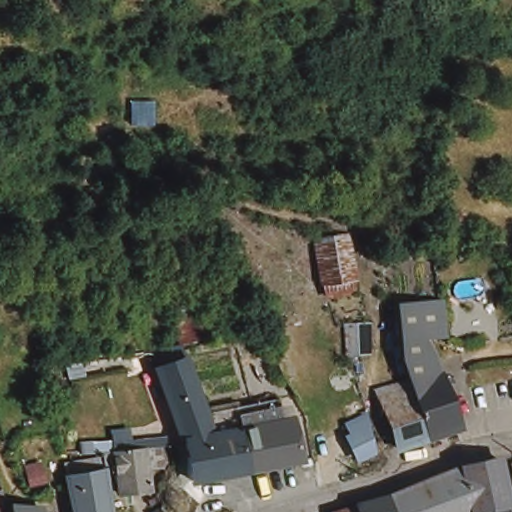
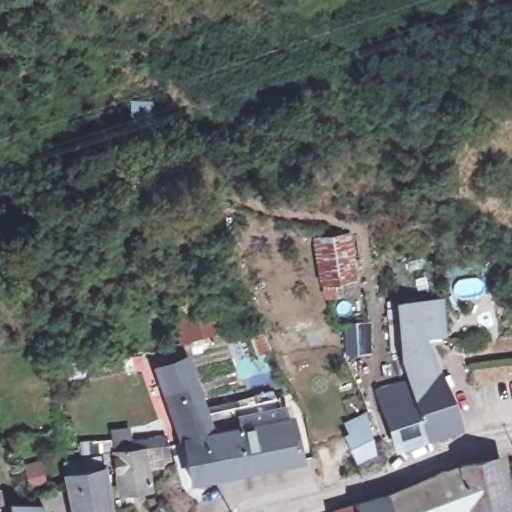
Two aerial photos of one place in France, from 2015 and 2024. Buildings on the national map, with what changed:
unchanged [(319,282),(311,245),(342,240),(349,277),(319,282)]
unchanged [(407,380),(397,354),(395,303),(436,300),(439,335),(424,336),(459,426),(432,437),(407,380)]
unchanged [(342,328),(367,326),(367,352),(344,355),(342,328)]
unchanged [(282,421),(294,420),(302,459),(187,480),(160,381),(154,361),(186,354),(191,373),(201,409),(277,396),(282,421)]
unchanged [(382,407),(378,409),(372,393),(407,380),(432,437),(399,451),(382,407)]
unchanged [(369,420),(380,455),(350,464),(342,441),(349,438),(345,428),(369,420)]
unchanged [(116,487),(107,443),(140,439),(147,481),(116,487)]
unchanged [(492,512),(491,508),(475,512),(392,512),(387,496),(387,494),(400,491),(404,490),(435,472),(450,470),(460,469),(460,465),(494,458),(505,504),(512,503),(512,512),(492,512)]
unchanged [(72,512),(65,467),(102,463),(109,512),(72,512)]
unchanged [(5,506),(0,507),(0,494),(1,493),(5,506)]
unchanged [(387,494),(387,496),(392,512),(355,512),(352,502),(387,494)]
unchanged [(352,502),(355,512),(332,512),(332,508),(352,502)]
unchanged [(14,504),(42,506),(44,512),(12,512),(11,505),(14,504)]

